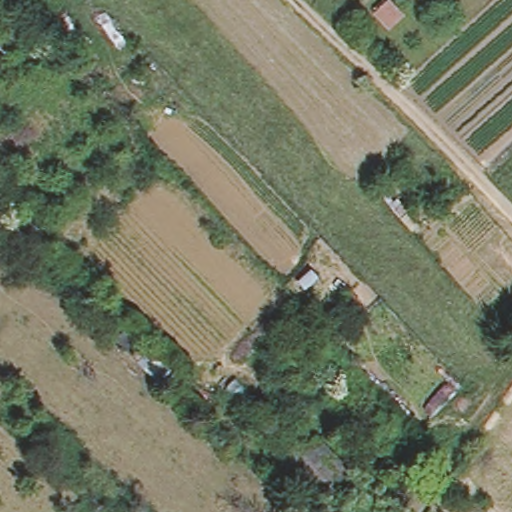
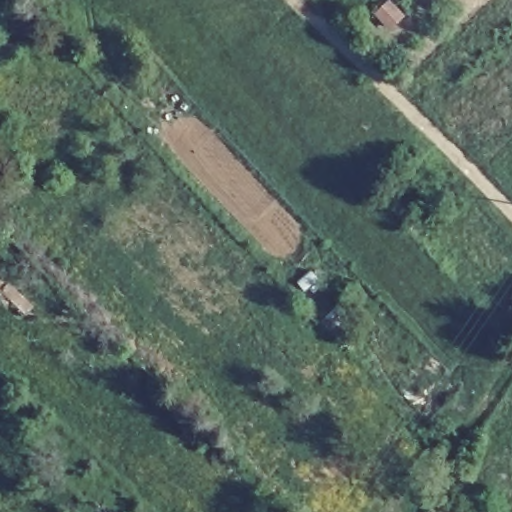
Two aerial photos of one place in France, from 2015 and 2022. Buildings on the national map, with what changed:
unchanged [(388,2),(402,16),(392,27),(377,13),(388,2)]
unchanged [(316,479),(298,459),(321,439),(349,467),(333,482),(325,490),(316,479)]

